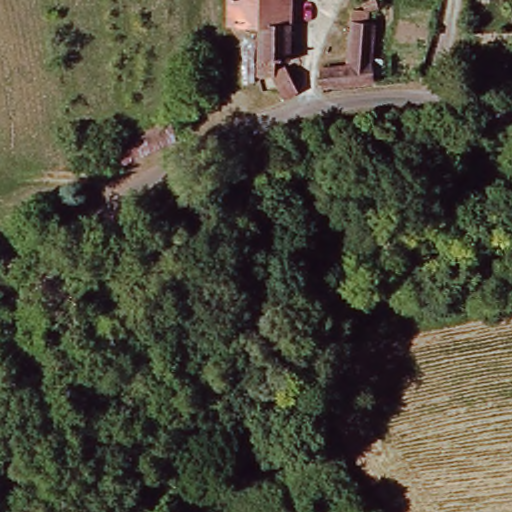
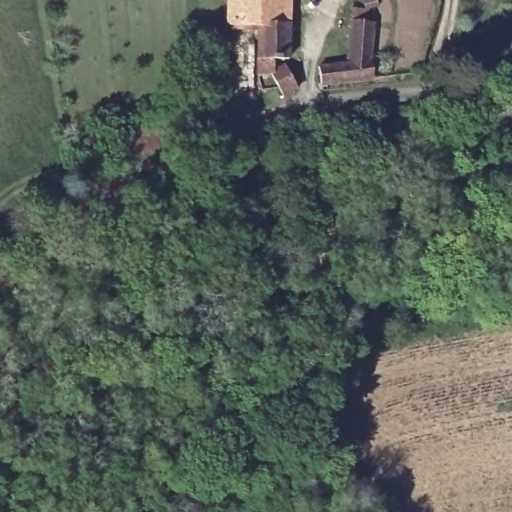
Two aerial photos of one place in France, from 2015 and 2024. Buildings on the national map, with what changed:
unchanged [(231,0),(292,0),(290,65),(278,67),(279,76),(290,72),(298,95),(284,102),(273,83),(258,81),(260,30),(231,27),(231,0)]
unchanged [(317,93),(318,76),(346,77),(349,20),(364,22),(361,32),(370,32),(367,95),(317,93)]
unchanged [(114,144),(171,121),(178,146),(120,169),(114,144)]

